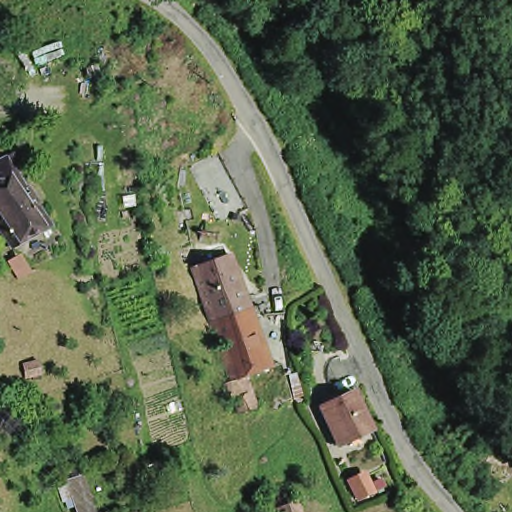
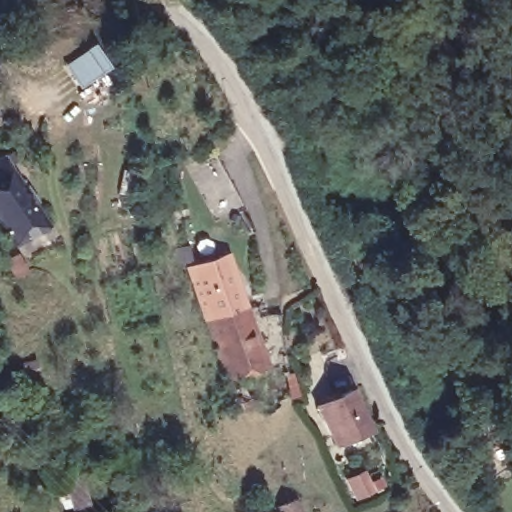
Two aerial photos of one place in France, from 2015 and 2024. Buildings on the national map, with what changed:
new [(110,71),(78,92),(61,68),(95,46),(110,71)]
unchanged [(188,165),(215,151),(243,208),(216,221),(188,165)]
unchanged [(0,228),(0,168),(6,164),(10,174),(14,173),(50,228),(16,251),(0,228)]
unchanged [(215,328),(195,272),(231,259),(251,314),(215,328)]
unchanged [(235,386),(215,328),(251,314),(271,372),(245,382),(257,413),(240,418),(230,387),(235,386)]
unchanged [(286,372),(295,399),(284,403),(277,375),(280,374),(286,372)]
unchanged [(315,411),(348,395),(363,426),(366,432),(334,448),(330,439),(315,411)]
unchanged [(65,496),(61,480),(86,475),(92,510),(83,512),(80,512),(76,494),(65,496)]
unchanged [(263,508),(251,512),(244,512),(240,501),(260,495),(263,508)]
unchanged [(277,509),(295,501),(300,512),(278,512),(277,509)]

